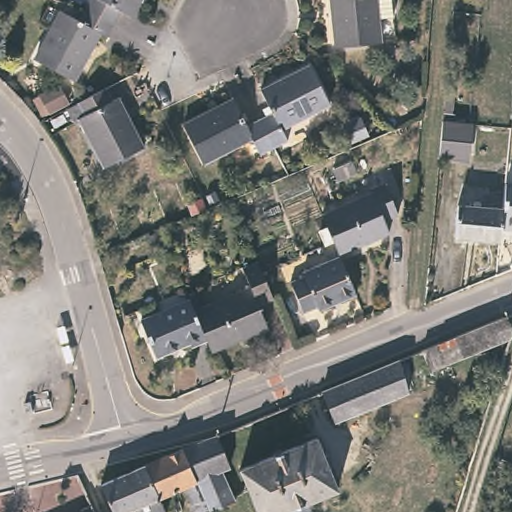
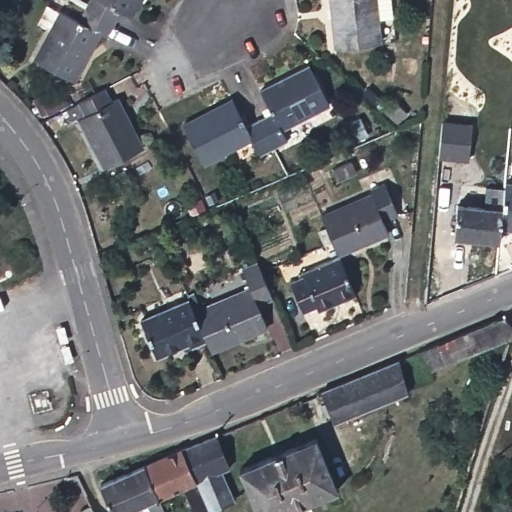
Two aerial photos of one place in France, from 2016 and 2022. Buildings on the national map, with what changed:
unchanged [(89,0),(139,0),(130,16),(121,13),(115,24),(85,8),(89,0)]
unchanged [(391,19),(377,21),(379,44),(335,49),(329,0),(389,0),(391,19)]
unchanged [(115,24),(107,37),(100,34),(74,81),(35,61),(61,14),(77,20),(85,8),(115,24)]
unchanged [(260,119),(270,114),(260,92),(308,67),(328,107),(280,131),(286,142),(273,148),(260,119)]
unchanged [(113,102),(118,99),(142,147),(102,168),(77,123),(72,125),(65,112),(106,90),(113,102)]
unchanged [(260,155),(252,142),(204,166),(184,125),(233,101),(246,126),(260,119),(273,148),(260,155)]
unchanged [(467,125),(470,126),(466,160),(438,158),(442,123),(467,125)]
unchanged [(354,174),(337,182),(332,172),(350,164),(354,174)]
unchanged [(500,183),(512,184),(512,229),(496,228),(498,198),(500,183)]
unchanged [(321,221),(370,200),(369,195),(383,189),(397,221),(383,227),(387,241),(338,262),(321,221)]
unchanged [(495,242),(450,237),(452,206),(478,209),(480,196),(498,198),(496,228),(495,242)]
unchanged [(355,302),(318,318),(316,314),(303,319),(290,288),(303,282),(301,277),(338,262),(355,302)]
unchanged [(182,297),(190,294),(196,309),(245,289),(237,271),(253,265),(267,300),(253,306),(261,329),(205,352),(201,343),(183,300),(182,297)]
unchanged [(201,343),(185,349),(184,345),(152,358),(135,320),(183,300),(201,343)]
unchanged [(508,331),(505,339),(425,372),(417,352),(498,319),(508,331)]
unchanged [(408,394),(335,423),(322,393),(398,362),(408,394)]
unchanged [(216,436),(230,468),(222,471),(235,501),(210,512),(209,512),(181,449),(216,436)]
unchanged [(287,512),(258,512),(240,470),(315,438),(337,491),(287,512)]
unchanged [(209,512),(190,512),(192,511),(182,489),(159,499),(144,466),(181,449),(209,512)]
unchanged [(164,512),(135,512),(134,509),(127,512),(112,512),(100,486),(144,466),(159,499),(164,512)]

